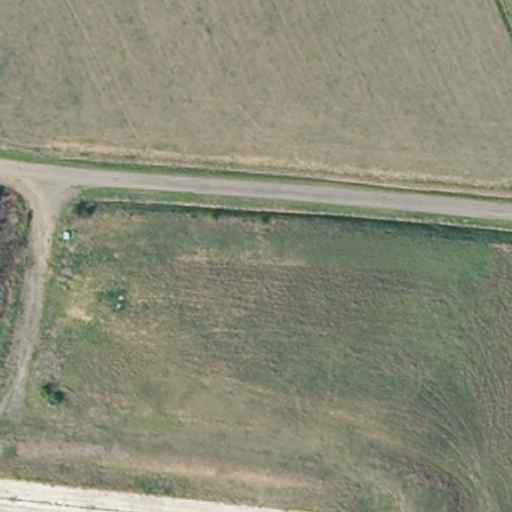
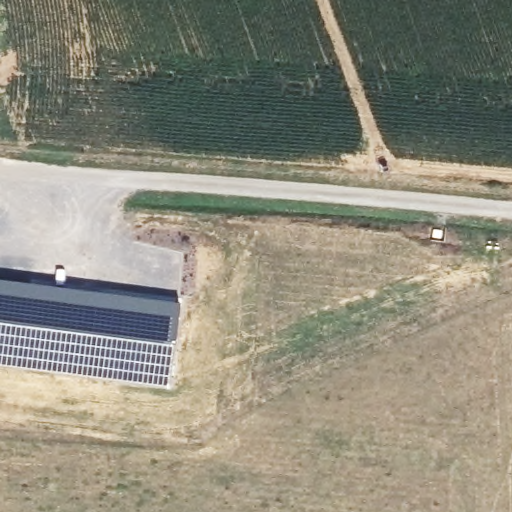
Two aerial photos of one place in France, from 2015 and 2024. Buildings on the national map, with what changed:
new [(175,346),(170,387),(0,365),(0,280),(181,303),(175,346)]
demolished [(0,512),(0,471),(379,512),(0,512)]

